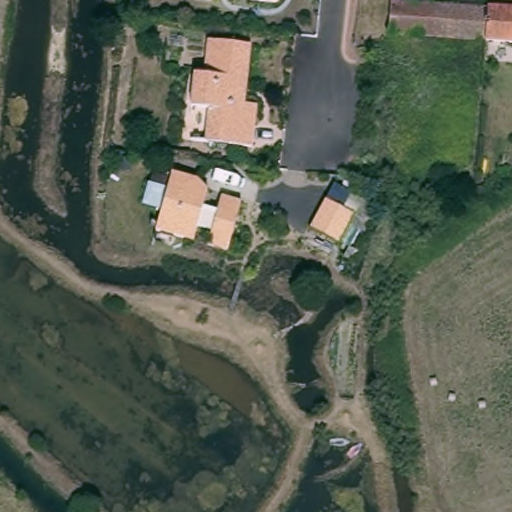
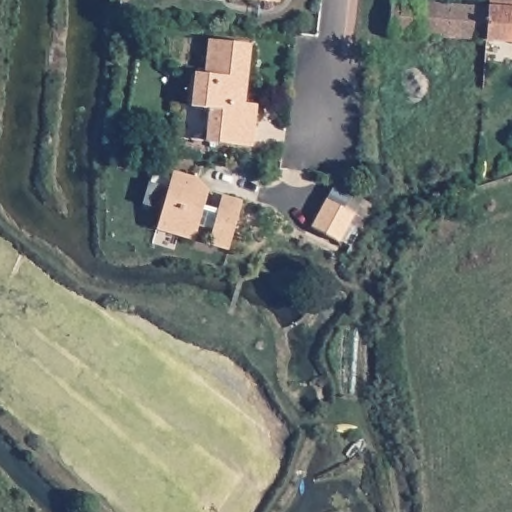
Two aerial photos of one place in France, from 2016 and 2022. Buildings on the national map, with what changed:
unchanged [(254,0),(280,0),(280,3),(254,0)]
unchanged [(395,33),(395,0),(416,0),(493,5),(492,41),(447,38),(395,33)]
unchanged [(493,3),(494,0),(512,0),(512,42),(492,41),(493,5),(493,3)]
unchanged [(252,89),(244,88),(243,104),(260,105),(257,147),(208,141),(212,110),(201,109),(194,101),(197,81),(204,75),(209,76),(212,39),(256,44),(252,89)]
unchanged [(232,251),(214,247),(217,232),(203,229),(200,242),(160,233),(175,172),(202,179),(214,193),(210,208),(224,212),(226,198),(245,204),(232,251)]
unchanged [(342,243),(314,229),(329,199),(357,214),(342,243)]

